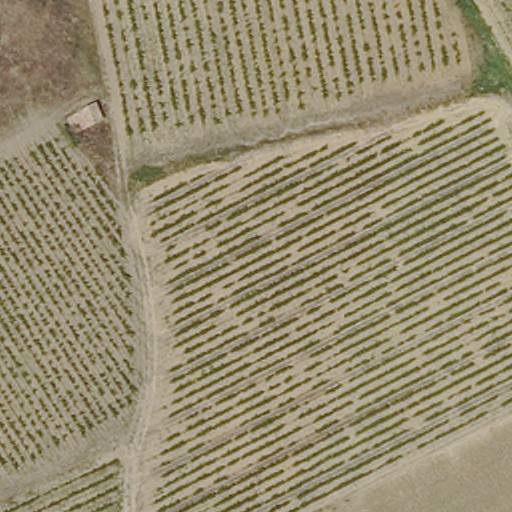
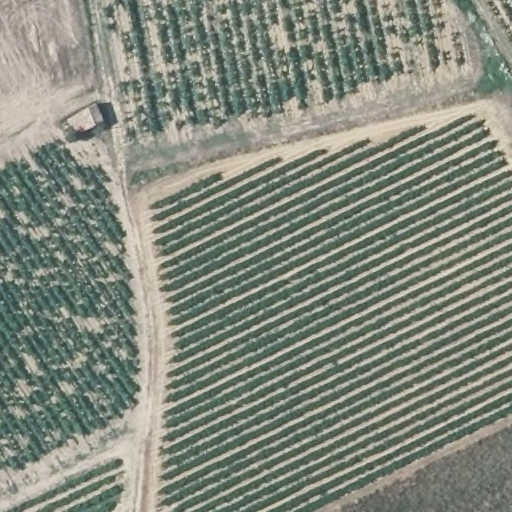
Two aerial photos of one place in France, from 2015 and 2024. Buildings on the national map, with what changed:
unchanged [(90,111),(95,112),(100,124),(80,136),(73,121),(90,111)]

